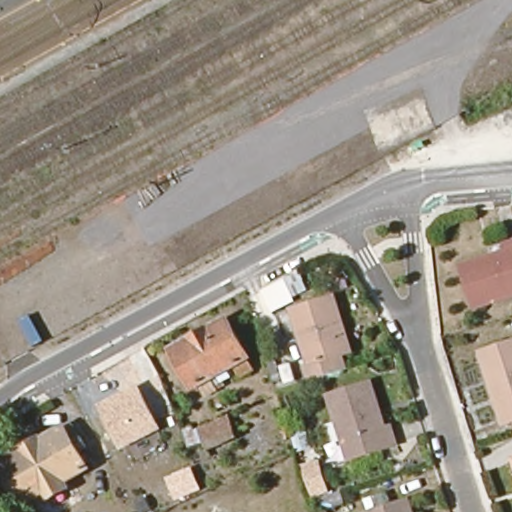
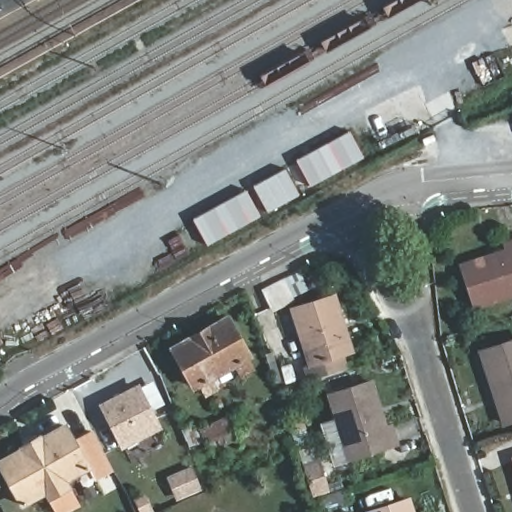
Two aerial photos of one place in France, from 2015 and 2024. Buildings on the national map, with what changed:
new [(349,130),(364,156),(311,187),(296,160),(349,130)]
new [(246,190),(260,216),(208,245),(193,219),(246,190)]
unchanged [(505,252),(502,245),(512,242),(512,296),(474,309),(460,266),(505,252)]
unchanged [(267,294),(300,276),(305,287),(271,304),(267,294)]
unchanged [(333,370),(312,376),(308,364),(314,362),(297,304),(340,290),(356,346),(344,350),(349,365),(333,370)]
unchanged [(221,375),(223,380),(205,391),(199,381),(194,384),(170,344),(226,311),(250,352),(244,354),(250,364),(238,371),(233,362),(226,366),(229,371),(221,375)]
unchanged [(482,352),(512,342),(512,424),(507,425),(482,352)]
demolished [(159,374),(141,383),(127,357),(143,348),(159,374)]
unchanged [(327,396),(372,381),(386,427),(392,425),(397,443),(348,458),(327,396)]
unchanged [(121,449),(99,404),(139,383),(163,429),(121,449)]
unchanged [(229,416),(239,439),(208,452),(204,444),(188,449),(183,434),(229,416)]
unchanged [(64,421),(73,437),(81,433),(86,442),(79,447),(87,463),(63,476),(67,483),(48,494),(44,486),(20,499),(0,462),(0,457),(64,421)]
unchanged [(512,458),(512,460),(511,458),(512,458)]
unchanged [(326,490),(312,494),(303,466),(317,461),(326,490)]
unchanged [(413,499),(417,512),(373,512),(413,499)]

